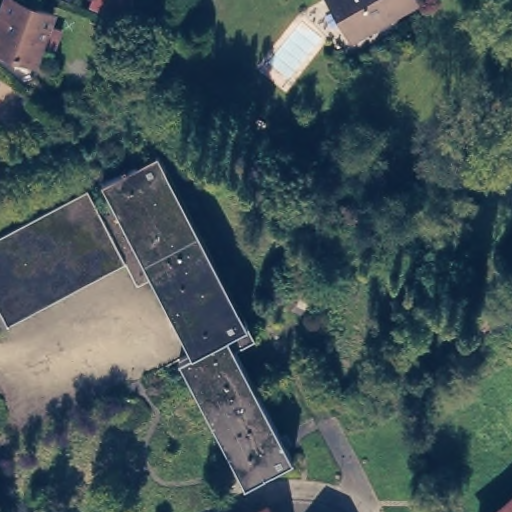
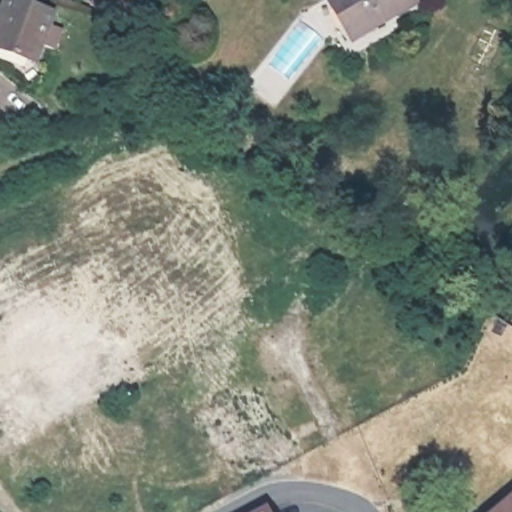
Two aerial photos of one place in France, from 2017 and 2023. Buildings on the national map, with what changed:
unchanged [(34,60),(0,47),(0,23),(2,23),(5,11),(0,10),(4,0),(25,0),(52,11),(34,60)]
unchanged [(329,0),(406,0),(349,33),(329,0)]
demolished [(177,357),(192,348),(150,274),(132,240),(116,247),(122,259),(4,321),(0,314),(0,230),(84,187),(94,203),(109,195),(100,178),(122,166),(120,161),(124,159),(126,164),(155,149),(252,333),(232,344),(257,393),(210,419),(177,357)]
unchanged [(486,328),(477,321),(485,308),(495,315),(486,328)]
demolished [(257,393),(290,453),(242,479),(210,419),(257,393)]
unchanged [(512,512),(499,512),(512,501),(512,512)]
unchanged [(270,504),(274,512),(254,512),(270,504)]

